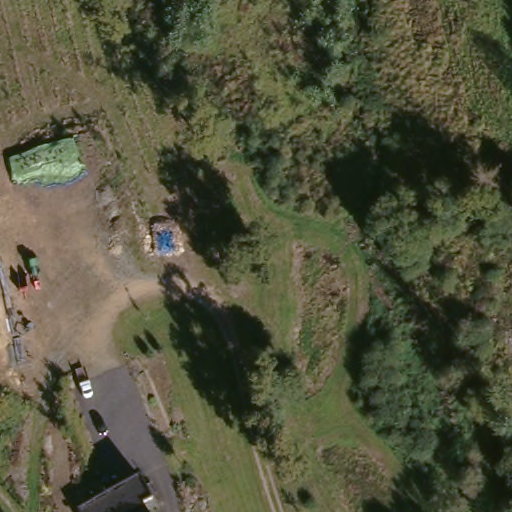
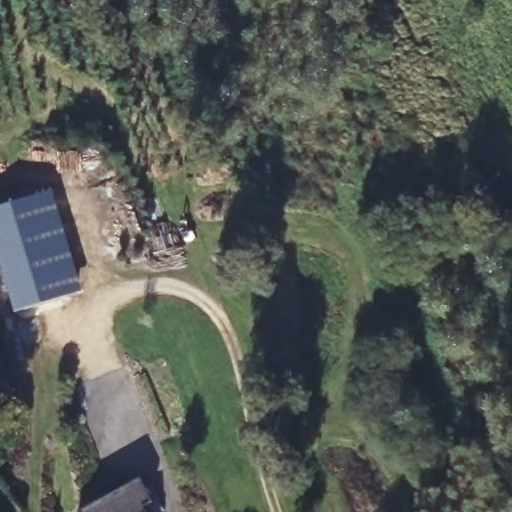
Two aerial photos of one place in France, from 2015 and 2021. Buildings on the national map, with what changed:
new [(0,257),(0,207),(55,191),(82,292),(16,312),(0,257)]
unchanged [(150,500),(140,506),(144,512),(78,512),(135,477),(150,500)]

